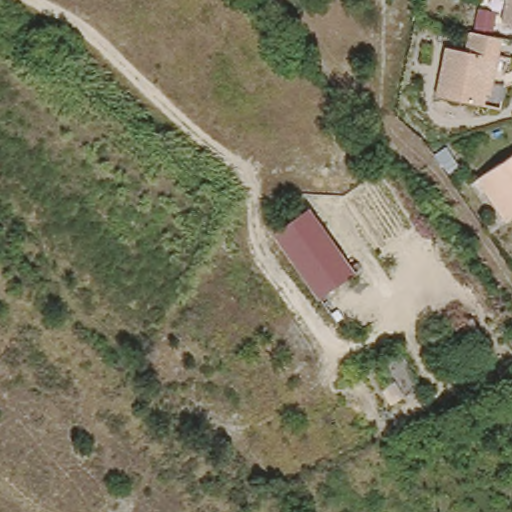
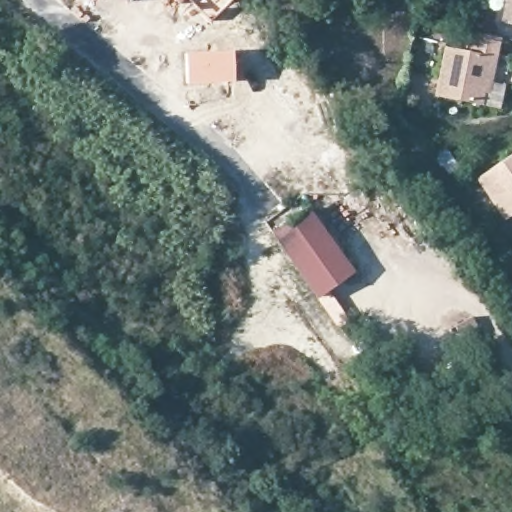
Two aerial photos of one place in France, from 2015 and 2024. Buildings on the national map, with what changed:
new [(130,0),(131,0),(130,1),(130,0)]
new [(175,0),(179,0),(177,2),(175,0)]
new [(190,0),(232,0),(210,21),(190,0)]
unchanged [(512,0),(512,19),(501,18),(504,0),(512,0)]
unchanged [(466,49),(469,35),(502,41),(500,54),(492,54),(483,105),(435,96),(443,45),(466,49)]
new [(187,85),(185,53),(232,50),(234,81),(187,85)]
unchanged [(475,184),(512,159),(512,220),(505,225),(475,184)]
unchanged [(325,295),(280,232),(314,207),(360,270),(325,295)]

